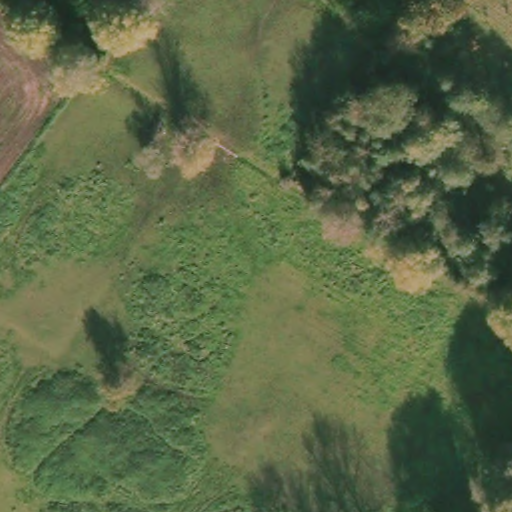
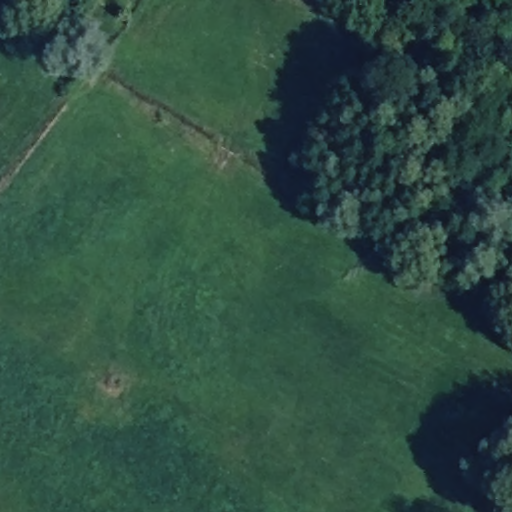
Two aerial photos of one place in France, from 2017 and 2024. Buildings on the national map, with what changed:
unchanged [(50,15),(60,21),(63,20),(68,24),(63,35),(56,31),(56,29),(46,23),(50,15)]

